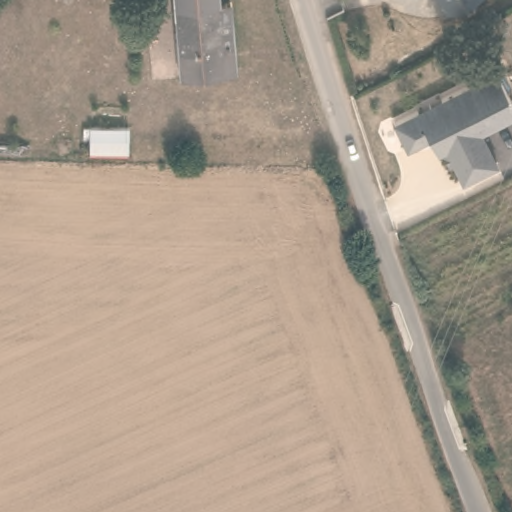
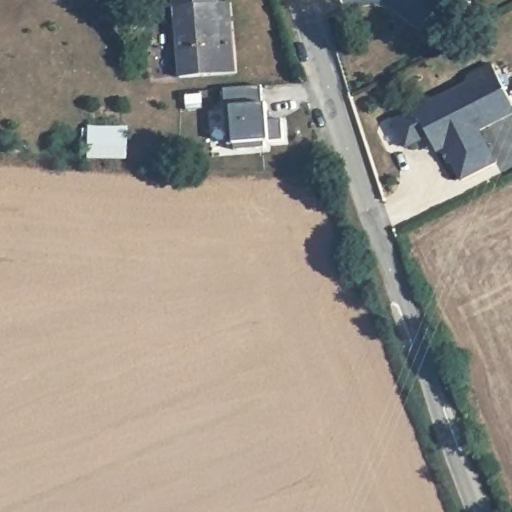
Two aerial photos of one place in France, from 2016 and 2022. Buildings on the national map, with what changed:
unchanged [(220,4),(234,4),(238,71),(180,78),(173,0),(220,0),(220,4)]
unchanged [(440,16),(432,0),(472,0),(440,16)]
unchanged [(434,144),(430,135),(407,146),(395,121),(418,110),(441,98),(468,84),(472,74),(493,63),(512,101),(512,114),(480,130),(496,162),(462,179),(453,161),(450,163),(442,148),(437,151),(434,144)]
new [(261,86),(262,105),(266,105),(267,120),(282,119),(283,140),(265,141),(266,148),(235,150),(235,143),(228,143),(225,89),(261,86)]
unchanged [(127,127),(127,159),(90,158),(89,125),(127,127)]

